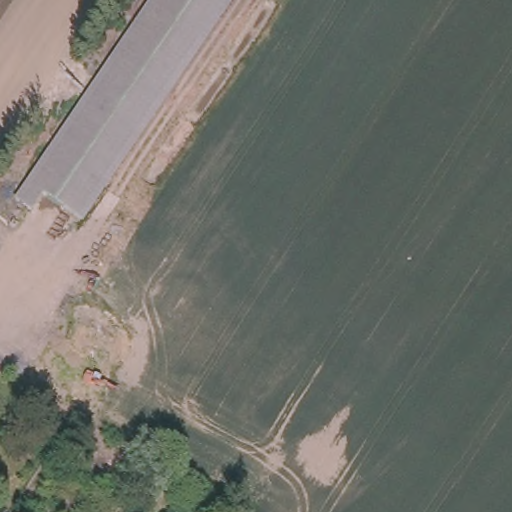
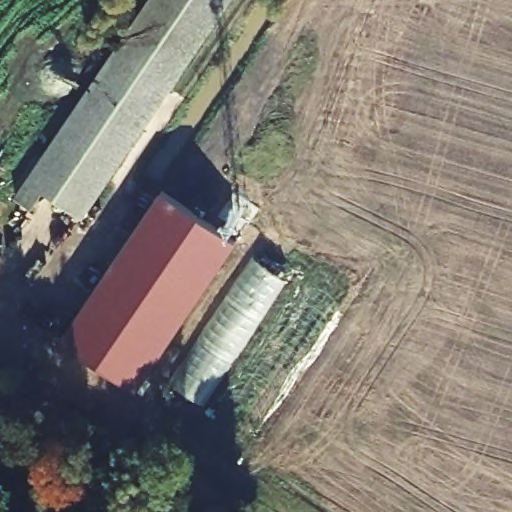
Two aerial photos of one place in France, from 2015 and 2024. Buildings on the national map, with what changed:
unchanged [(41,195),(30,212),(15,202),(137,0),(221,0),(84,222),(41,195)]
new [(162,189),(237,239),(135,389),(60,338),(162,189)]
new [(288,281),(204,406),(170,383),(255,256),(288,281)]

